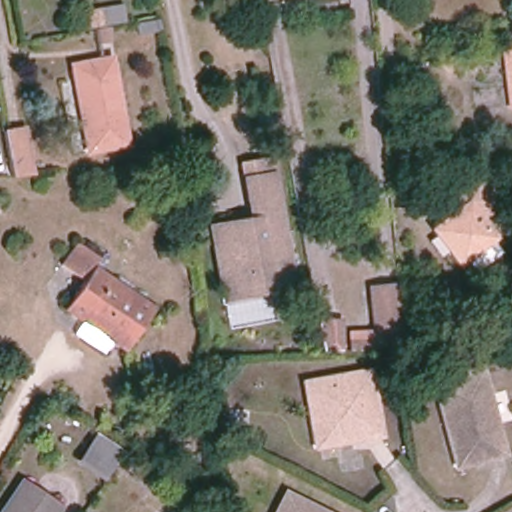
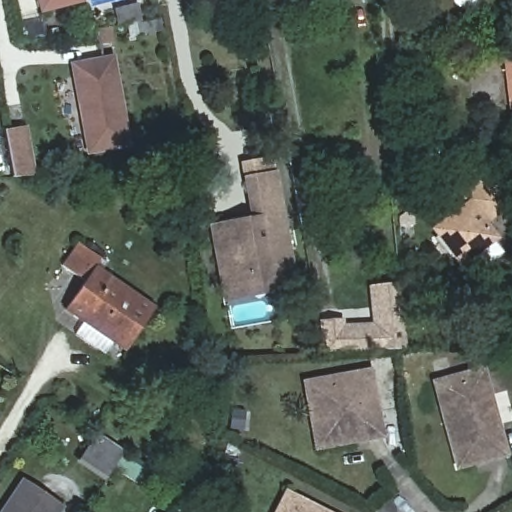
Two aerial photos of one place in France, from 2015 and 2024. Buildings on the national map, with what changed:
new [(37,15),(34,0),(82,0),(83,4),(37,15)]
unchanged [(161,31),(138,35),(137,24),(159,20),(161,31)]
unchanged [(112,41),(99,43),(96,29),(109,27),(112,41)]
unchanged [(511,101),(505,52),(504,47),(512,46),(512,106),(511,106),(511,101)]
unchanged [(127,144),(88,151),(72,65),(111,57),(127,144)]
unchanged [(281,120),(258,124),(257,113),(279,109),(281,120)]
unchanged [(33,175),(12,177),(4,132),(25,127),(33,175)]
unchanged [(244,279),(246,292),(222,296),(209,227),(249,219),(245,196),(241,179),(266,174),(269,191),(284,272),(244,279)]
unchanged [(497,242),(465,267),(440,235),(472,211),(466,203),(490,185),(508,210),(486,227),(497,242)]
unchanged [(125,351),(112,342),(104,355),(74,335),(83,322),(64,310),(84,281),(61,265),(72,247),(81,246),(99,257),(92,267),(154,308),(125,351)]
unchanged [(406,348),(396,348),(324,352),(323,347),(318,322),(341,322),(342,333),(377,332),(373,289),(400,287),(406,348)]
unchanged [(450,377),(436,381),(432,366),(446,362),(450,377)]
unchanged [(506,459),(492,463),(491,463),(488,454),(465,460),(451,410),(442,412),(435,387),(483,374),(506,459)]
unchanged [(377,441),(361,443),(360,432),(320,440),(316,411),(307,412),(302,387),(366,376),(377,441)]
unchanged [(104,478),(79,461),(97,435),(122,452),(104,478)]
unchanged [(159,478),(154,487),(124,468),(130,460),(159,478)]
unchanged [(58,512),(1,512),(22,481),(62,507),(58,512)]
unchanged [(180,494),(175,501),(164,493),(169,486),(180,494)]
unchanged [(287,497),(316,512),(280,512),(287,497)]
unchanged [(201,507),(209,512),(198,512),(201,507)]

